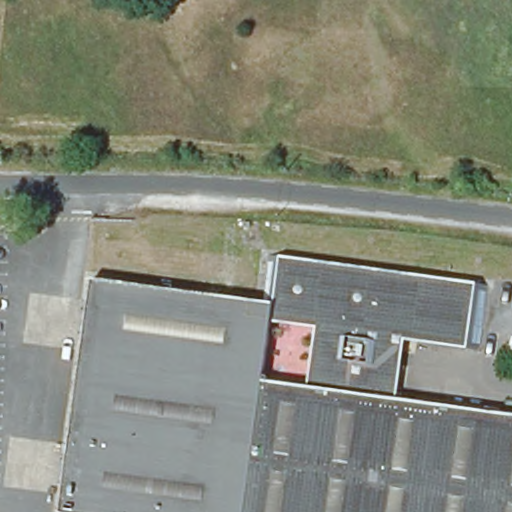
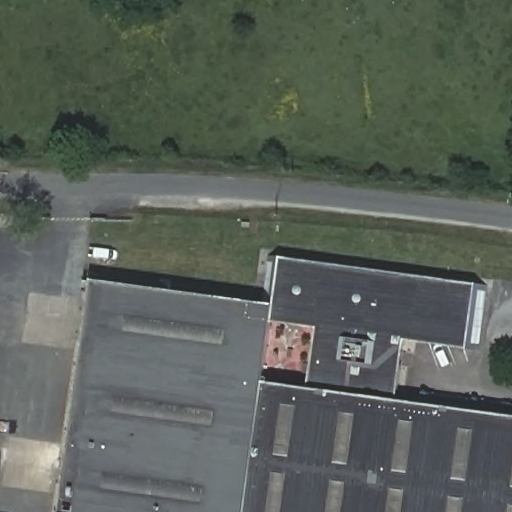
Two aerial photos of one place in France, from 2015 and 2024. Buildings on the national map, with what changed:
unchanged [(257,312),(265,263),(275,264),(272,285),(268,314),(267,326),(258,393),(256,406),(242,512),(59,512),(87,290),(257,312)]
unchanged [(303,398),(312,334),(267,326),(268,314),(272,285),(275,264),(483,294),(475,359),(400,350),(399,362),(397,375),(393,409),(512,428),(512,512),(242,512),(256,406),(258,393),(303,398)]

